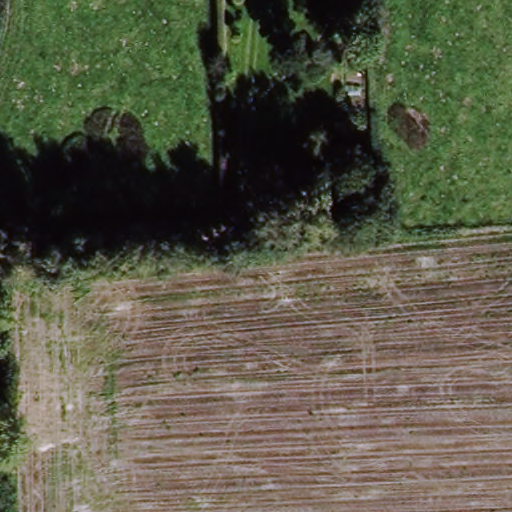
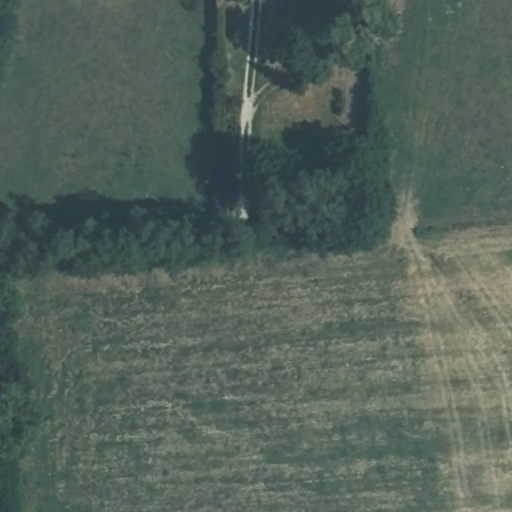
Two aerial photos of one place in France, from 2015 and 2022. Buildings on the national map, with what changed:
unchanged [(369,227),(339,230),(337,210),(367,207),(369,227)]

